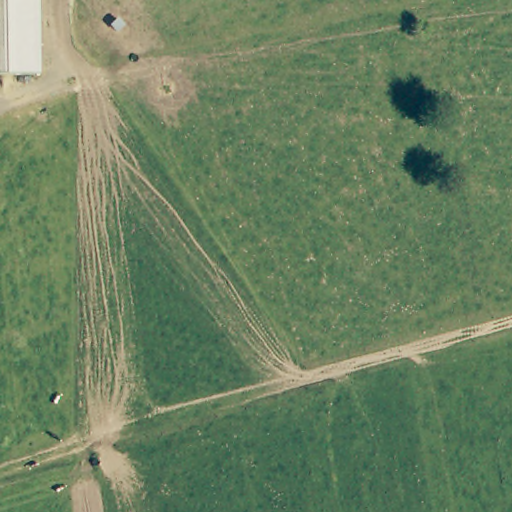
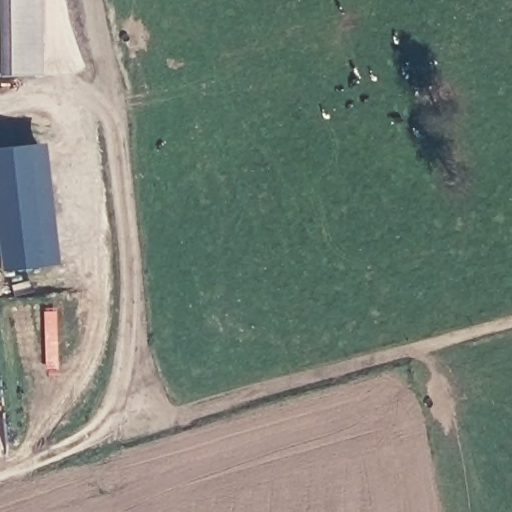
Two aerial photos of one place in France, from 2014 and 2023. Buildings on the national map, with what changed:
unchanged [(0,74),(0,0),(39,0),(40,75),(0,74)]
new [(0,147),(41,141),(55,263),(0,270),(0,147)]

